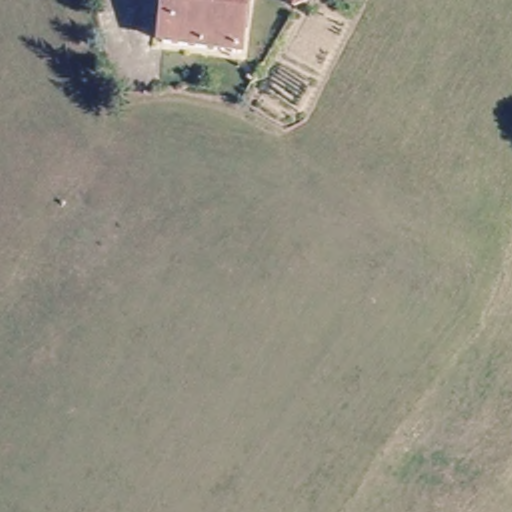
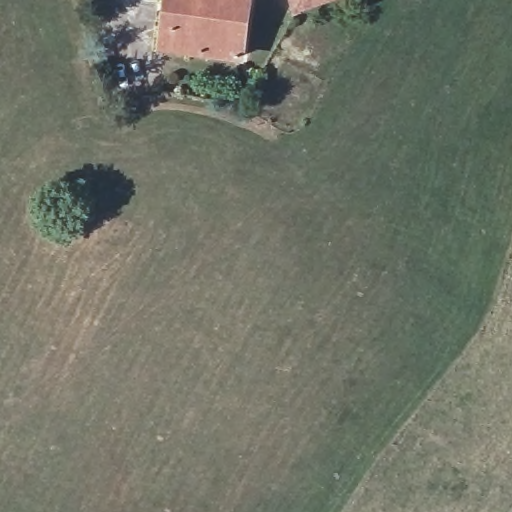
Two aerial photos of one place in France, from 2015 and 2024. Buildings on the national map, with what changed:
unchanged [(241,47),(167,36),(171,0),(246,0),(241,47)]
unchanged [(303,10),(299,0),(324,0),(303,10)]

